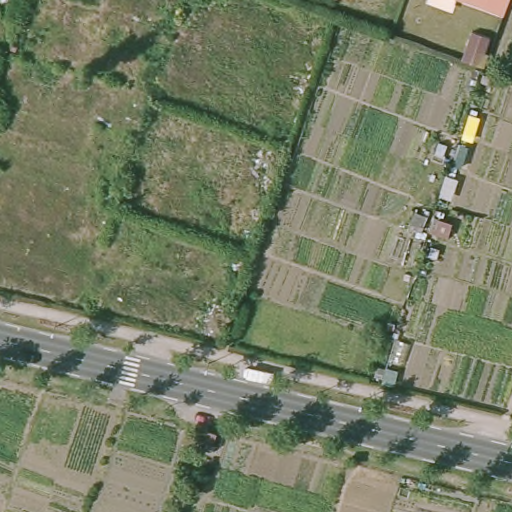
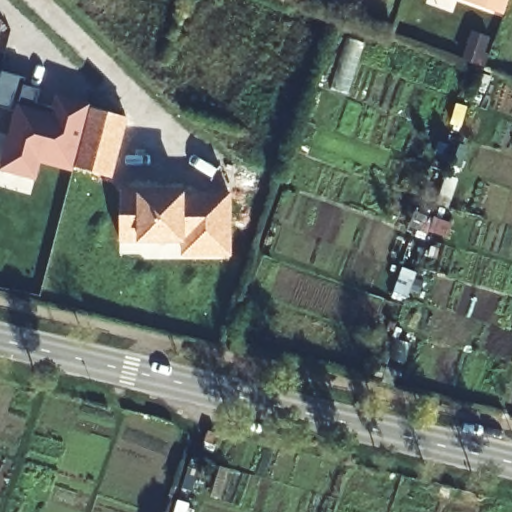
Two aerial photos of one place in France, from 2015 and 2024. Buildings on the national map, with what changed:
unchanged [(483,7),(462,0),(485,0),(483,7)]
new [(0,105),(0,78),(2,70),(26,77),(23,84),(41,89),(36,103),(52,107),(55,94),(91,104),(90,107),(129,116),(113,178),(73,165),(73,171),(41,162),(36,180),(0,170),(15,110),(0,105)]
new [(183,242),(138,242),(119,243),(122,188),(138,188),(186,190),(233,191),(233,255),(182,256),(183,242)]

